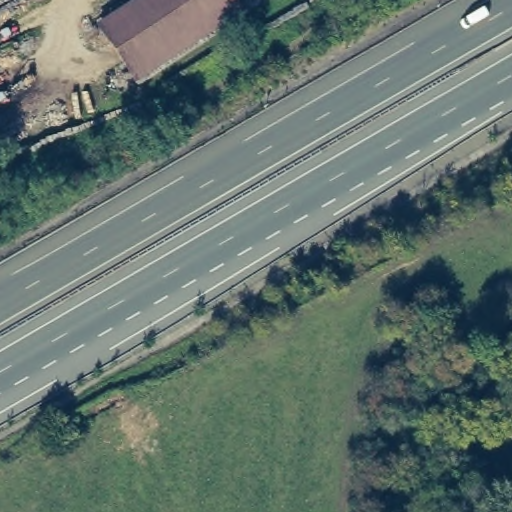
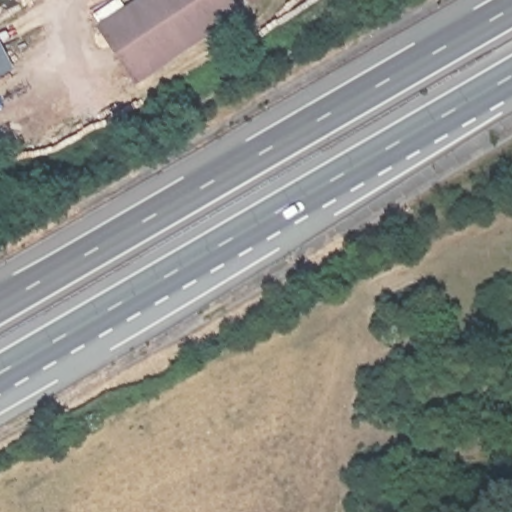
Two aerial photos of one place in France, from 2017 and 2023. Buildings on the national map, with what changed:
unchanged [(97,27),(140,0),(233,0),(245,17),(137,84),(97,27)]

